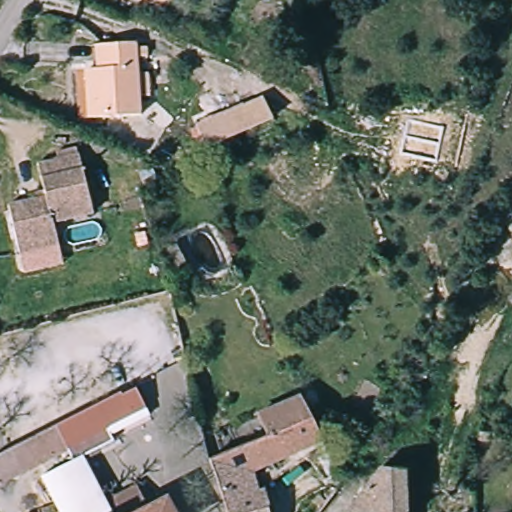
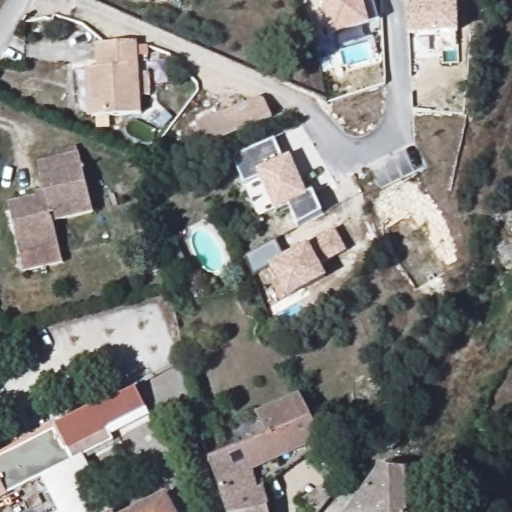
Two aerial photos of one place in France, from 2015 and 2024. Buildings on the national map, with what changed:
unchanged [(182,0),(180,3),(175,0),(182,0)]
new [(371,26),(333,38),(323,0),(373,0),(379,24),(371,26)]
new [(409,36),(408,3),(434,1),(434,0),(457,0),(457,1),(459,33),(409,36)]
unchanged [(97,119),(94,70),(108,69),(107,46),(139,45),(143,116),(97,119)]
unchanged [(218,146),(206,125),(271,91),(282,113),(218,146)]
new [(323,213),(298,227),(288,205),(275,211),(261,180),(245,186),(234,158),(274,140),(283,160),(291,156),(307,196),(312,192),(323,213)]
unchanged [(23,256),(20,243),(12,203),(47,195),(40,164),(87,154),(99,213),(58,221),(61,234),(64,247),(23,256)]
new [(347,252),(321,267),(327,279),(287,299),(269,268),(253,276),(246,257),(275,242),(284,257),(308,244),(334,228),(347,252)]
unchanged [(76,455),(70,443),(7,479),(0,466),(0,451),(137,379),(152,408),(113,428),(117,434),(85,450),(76,455)]
unchanged [(250,469),(256,485),(261,483),(266,505),(246,512),(226,512),(205,456),(269,429),(258,413),(303,394),(321,437),(250,469)]
unchanged [(169,492),(179,512),(67,512),(46,472),(76,455),(85,450),(112,495),(142,476),(147,484),(155,499),(169,492)]
unchanged [(375,472),(403,473),(405,512),(353,512),(375,472)]
unchanged [(266,505),(268,512),(246,512),(266,505)]

